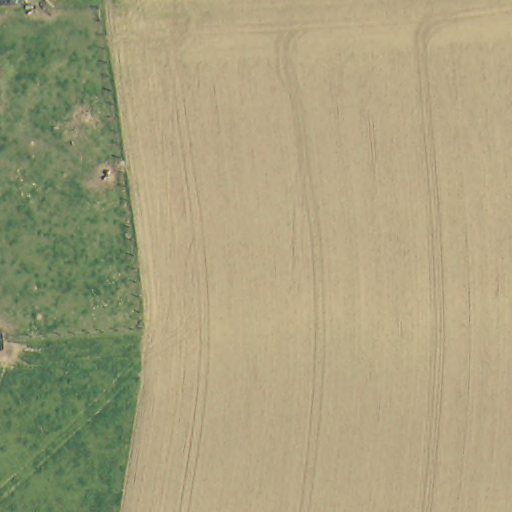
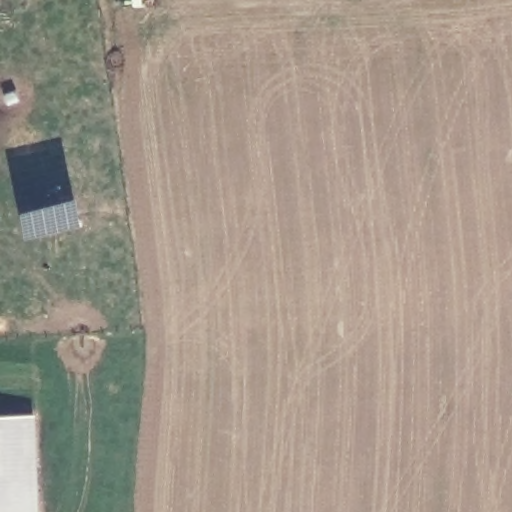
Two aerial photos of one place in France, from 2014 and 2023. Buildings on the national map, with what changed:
new [(0,512),(0,414),(34,412),(39,512),(0,512)]

